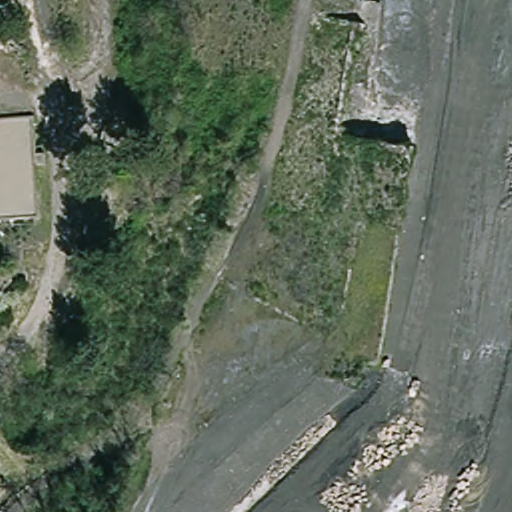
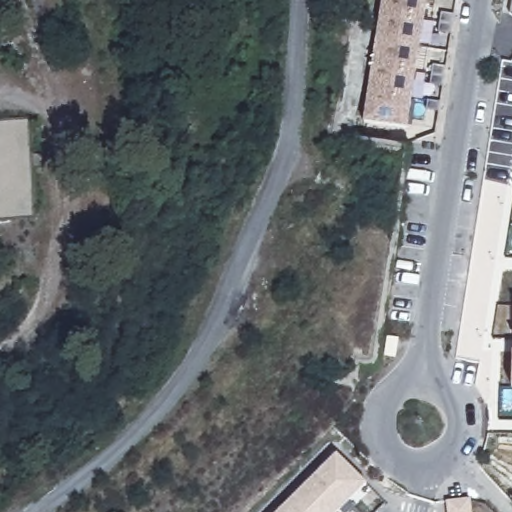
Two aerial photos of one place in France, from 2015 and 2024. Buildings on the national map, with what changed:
new [(364,119),(382,0),(428,0),(408,126),(364,119)]
unchanged [(0,118),(30,116),(35,220),(0,221),(0,118)]
new [(368,484),(339,512),(277,512),(338,453),(368,484)]
new [(447,501),(472,498),(473,512),(448,512),(447,501)]

